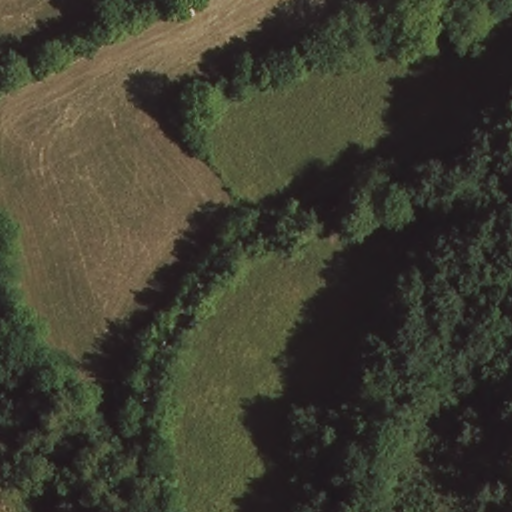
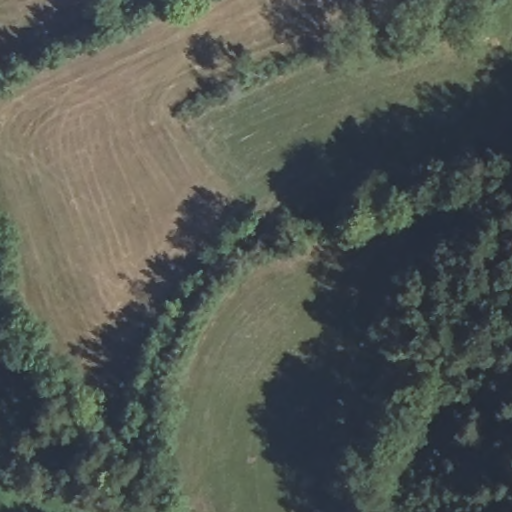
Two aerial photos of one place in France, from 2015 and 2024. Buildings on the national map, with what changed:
[]

